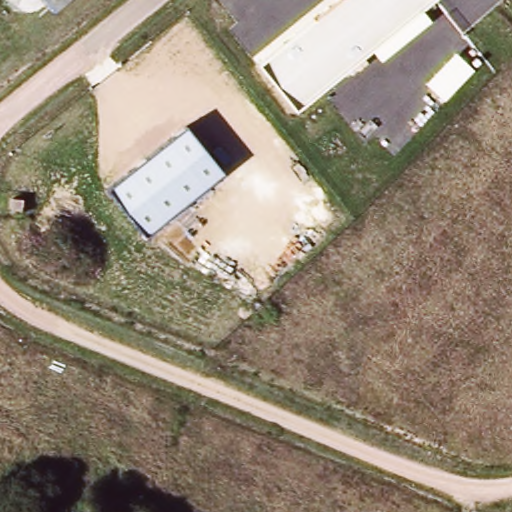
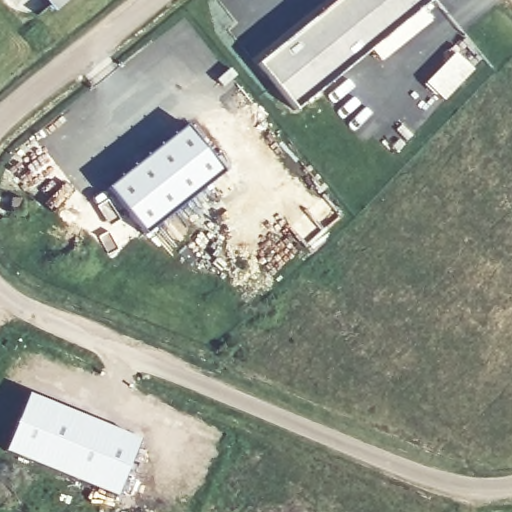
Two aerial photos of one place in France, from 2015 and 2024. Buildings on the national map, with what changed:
unchanged [(49,0),(72,0),(58,12),(49,0)]
unchanged [(436,0),(295,114),(258,67),(339,0),(436,0)]
new [(473,69),(444,100),(425,83),(455,53),(473,69)]
unchanged [(224,173),(144,234),(109,187),(186,127),(224,173)]
new [(140,439),(116,499),(1,454),(26,394),(140,439)]

